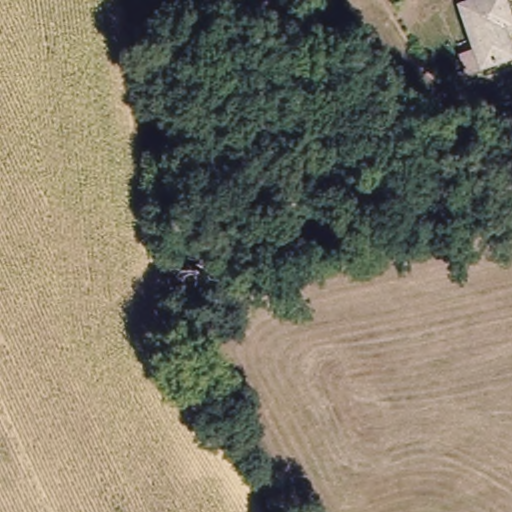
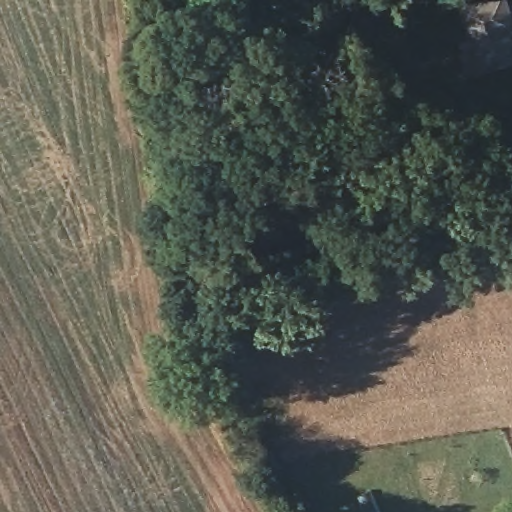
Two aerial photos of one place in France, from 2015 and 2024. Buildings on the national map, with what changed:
unchanged [(505,31),(512,54),(512,61),(475,71),(457,8),(485,0),(503,0),(511,26),(505,31)]

